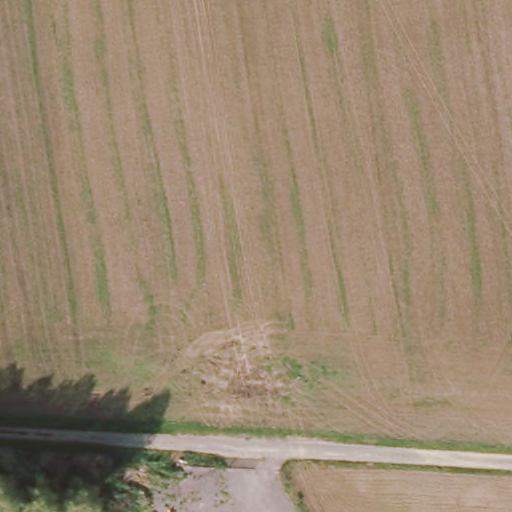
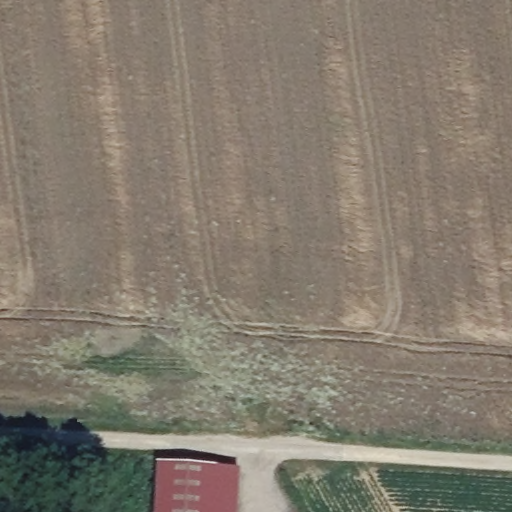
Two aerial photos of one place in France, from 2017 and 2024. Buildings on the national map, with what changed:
new [(240,512),(156,512),(157,464),(242,468),(240,512)]

